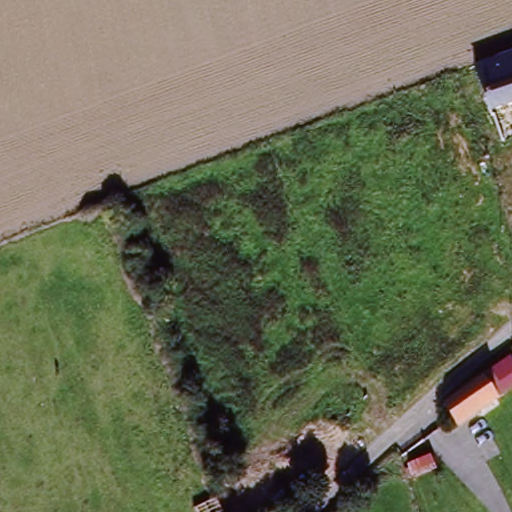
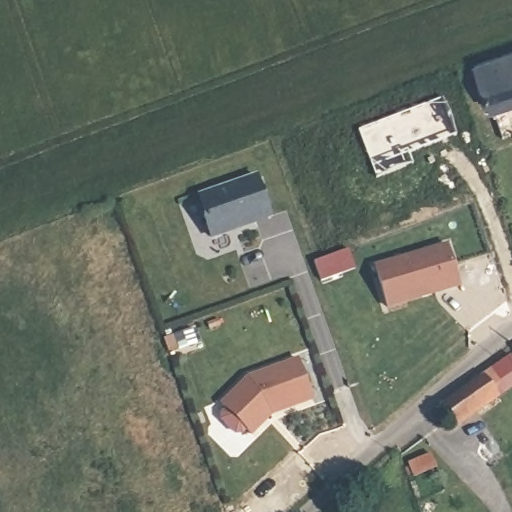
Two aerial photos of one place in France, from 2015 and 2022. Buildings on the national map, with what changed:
unchanged [(481,94),(475,72),(512,61),(512,112),(490,119),(481,94)]
new [(272,218),(210,239),(196,196),(257,176),(272,218)]
new [(447,244),(460,285),(387,307),(375,265),(447,244)]
unchanged [(490,367),(505,356),(512,364),(512,372),(500,381),(490,387),(496,397),(460,425),(441,403),(490,367)]
new [(247,376),(297,358),(311,399),(270,413),(250,434),(245,428),(241,433),(234,432),(221,420),(220,413),(225,408),(220,403),(247,376)]

